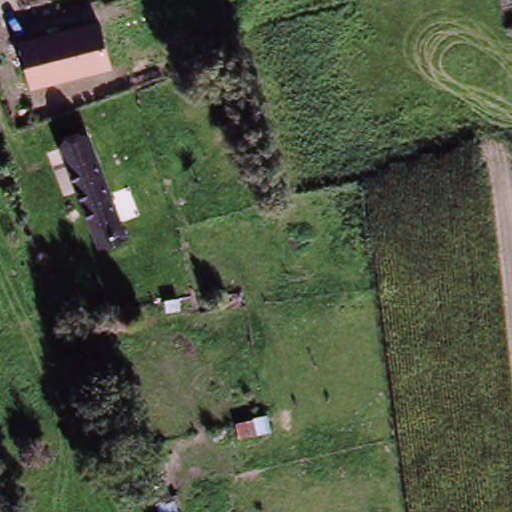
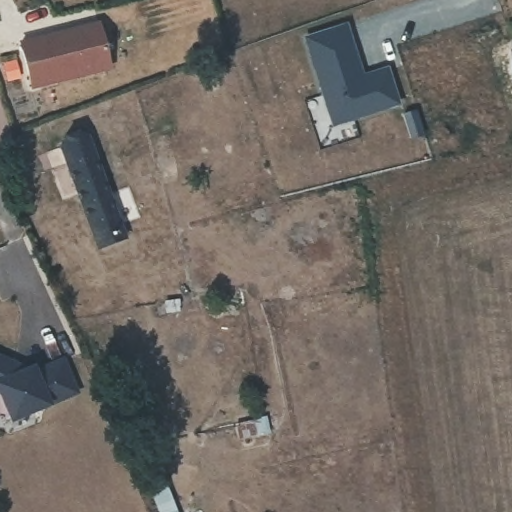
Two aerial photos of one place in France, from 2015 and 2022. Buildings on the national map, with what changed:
new [(94,21),(106,65),(26,87),(15,42),(94,21)]
new [(333,125),(304,37),(347,23),(364,74),(388,66),(400,105),(333,125)]
unchanged [(128,226),(97,237),(62,144),(95,132),(128,226)]
new [(35,363),(37,366),(65,356),(80,393),(51,404),(11,421),(0,394),(0,354),(28,366),(35,363)]

